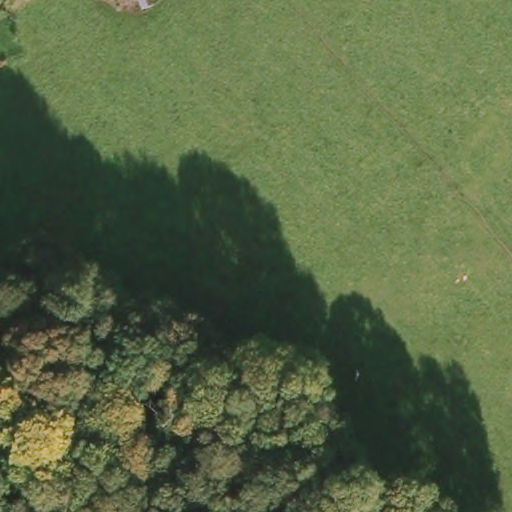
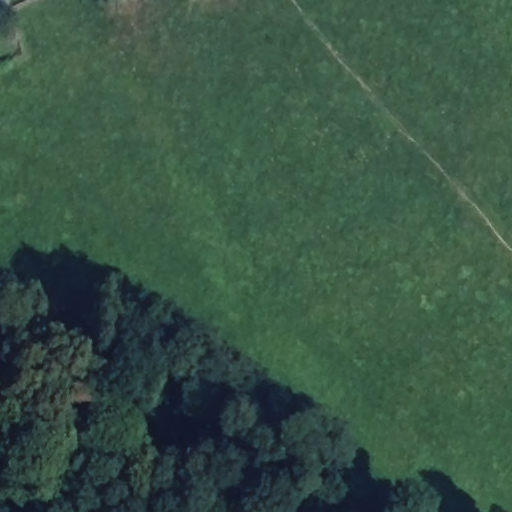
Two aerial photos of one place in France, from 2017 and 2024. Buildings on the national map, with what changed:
[]

